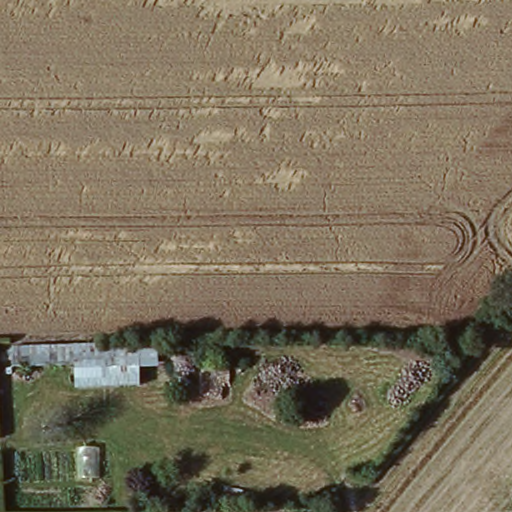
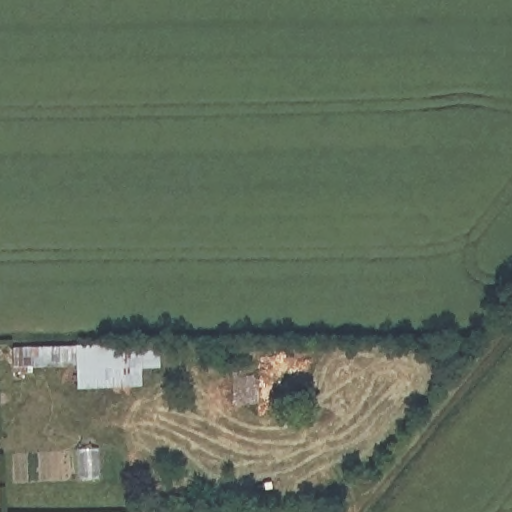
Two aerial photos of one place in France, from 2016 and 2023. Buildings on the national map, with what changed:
unchanged [(121,368),(78,372),(77,366),(33,369),(33,363),(16,366),(15,349),(117,345),(121,368)]

